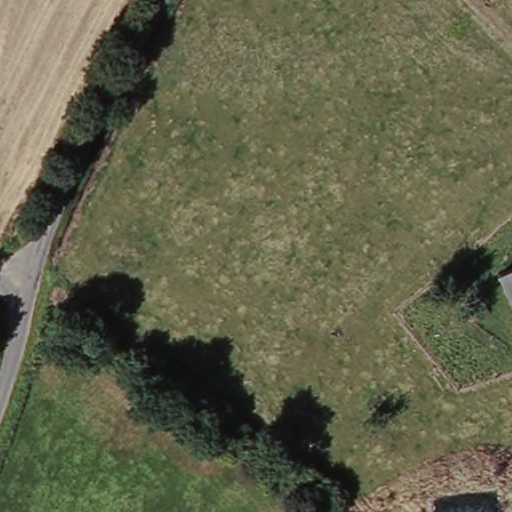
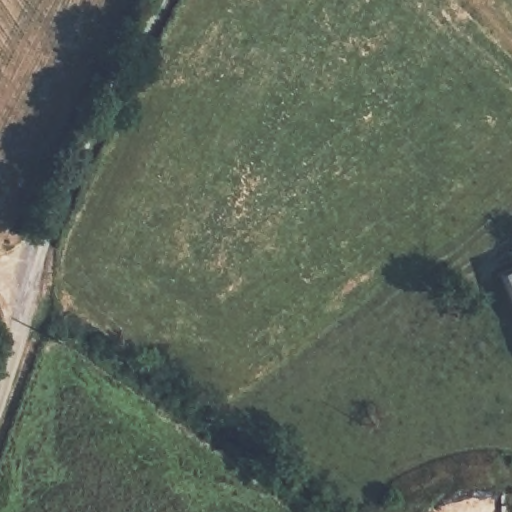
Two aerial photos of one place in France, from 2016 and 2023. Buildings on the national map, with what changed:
unchanged [(512,271),(512,308),(498,278),(512,271)]

